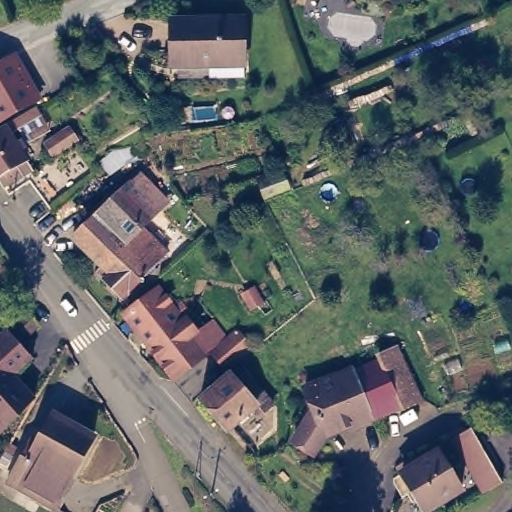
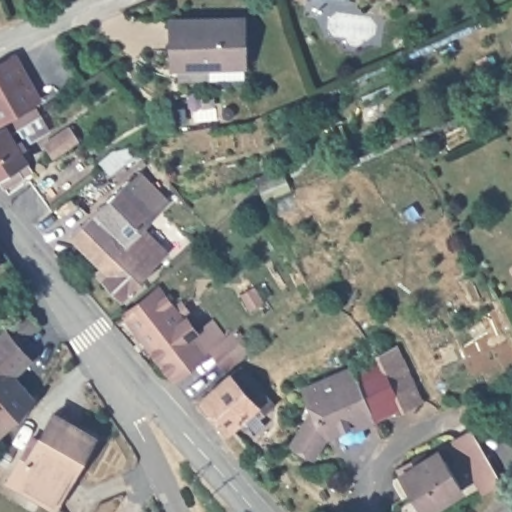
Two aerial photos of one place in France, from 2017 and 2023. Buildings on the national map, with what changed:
unchanged [(168,13),(235,11),(237,58),(201,60),(202,71),(172,72),(172,55),(169,55),(168,13)]
unchanged [(35,93),(0,114),(0,54),(8,49),(35,93)]
unchanged [(0,180),(0,122),(2,121),(11,136),(16,133),(27,152),(12,162),(18,171),(2,183),(0,180)]
unchanged [(296,186),(273,196),(267,182),(265,176),(287,166),(296,186)]
unchanged [(162,194),(155,201),(157,204),(140,220),(166,248),(122,292),(99,268),(105,263),(74,230),(128,174),(130,176),(137,168),(162,194)]
unchanged [(122,315),(155,288),(180,319),(177,321),(187,332),(190,329),(200,344),(197,346),(201,351),(169,378),(122,315)]
unchanged [(10,330),(12,332),(27,317),(35,326),(22,343),(8,363),(36,394),(0,432),(0,337),(10,330)]
unchanged [(414,396),(369,415),(344,366),(373,354),(390,346),(395,358),(397,357),(414,396)]
unchanged [(197,402),(193,397),(235,359),(265,396),(266,425),(244,444),(230,428),(234,424),(230,419),(222,425),(210,411),(203,417),(193,406),(197,402)]
unchanged [(369,415),(347,426),(345,422),(328,430),(326,425),(320,428),(306,454),(285,441),(305,409),(295,386),(344,366),(369,415)]
unchanged [(58,506),(12,480),(35,436),(41,439),(55,412),(95,435),(58,506)]
unchanged [(478,442),(502,481),(487,489),(455,438),(470,430),(478,442)]
unchanged [(421,448),(425,455),(437,449),(457,486),(419,508),(407,488),(397,495),(391,484),(392,476),(403,469),(400,464),(410,458),(408,455),(421,448)]

